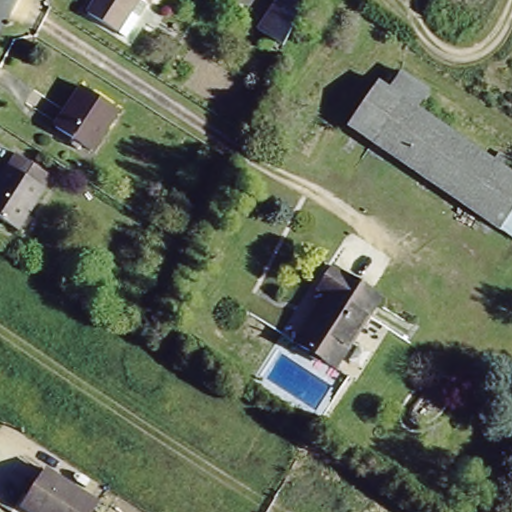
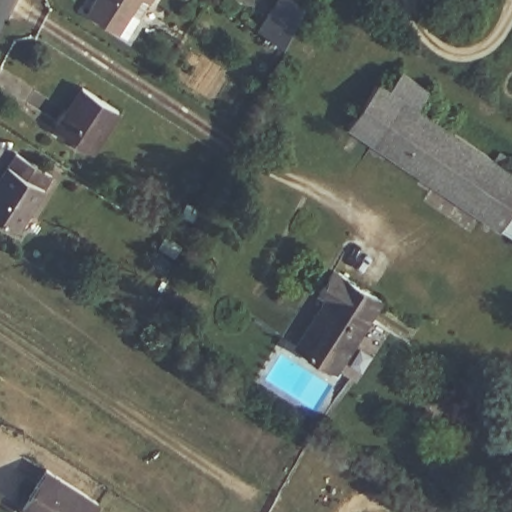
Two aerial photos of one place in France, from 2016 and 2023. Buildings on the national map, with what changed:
unchanged [(90,11),(97,0),(151,0),(149,4),(142,16),(131,36),(90,11)]
unchanged [(390,91),(401,70),(434,93),(418,111),(512,175),(512,239),(347,128),(377,81),(390,91)]
unchanged [(116,107),(91,146),(57,125),(82,86),(116,107)]
unchanged [(15,157),(51,179),(19,230),(0,218),(0,182),(15,157)]
unchanged [(184,199),(199,207),(190,223),(175,216),(184,199)]
unchanged [(334,269),(381,299),(337,369),(299,345),(328,299),(317,292),(334,269)]
unchanged [(48,472),(99,504),(94,512),(78,512),(38,486),(48,472)]
unchanged [(24,510),(38,486),(78,512),(27,512),(24,510)]

